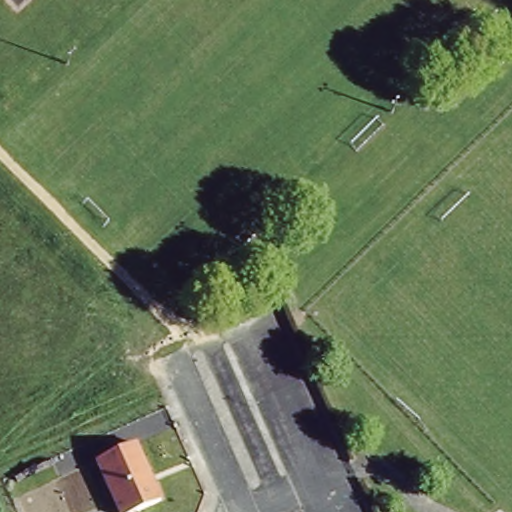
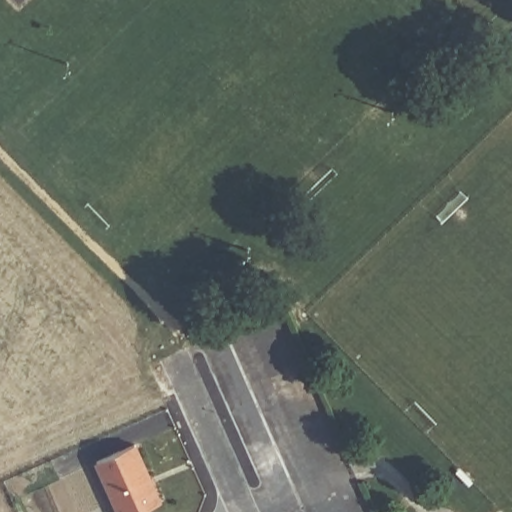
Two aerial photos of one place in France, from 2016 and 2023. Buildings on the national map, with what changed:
unchanged [(136,512),(118,512),(95,460),(133,443),(159,501),(136,512)]

